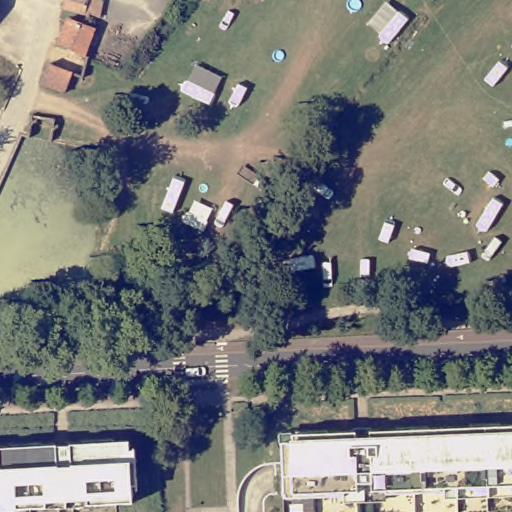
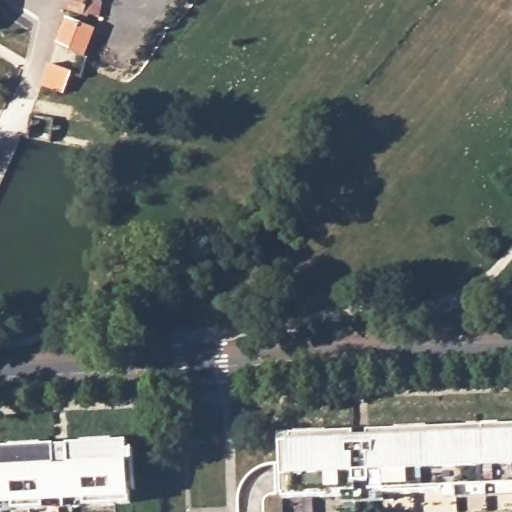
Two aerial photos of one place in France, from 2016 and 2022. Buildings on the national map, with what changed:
unchanged [(69,0),(93,0),(102,4),(97,19),(65,9),(69,0)]
unchanged [(86,56),(57,49),(65,25),(94,35),(86,56)]
unchanged [(54,67),(74,76),(66,99),(44,90),(54,67)]
unchanged [(455,490),(455,497),(395,499),(395,493),(351,493),(350,500),(293,501),(290,437),(308,435),(308,430),(337,428),(338,436),(403,436),(405,429),(433,429),(434,435),(477,435),(475,427),(512,426),(512,488),(455,490)]
unchanged [(7,445),(38,443),(38,446),(79,443),(79,440),(109,438),(110,441),(123,440),(131,454),(135,471),(135,486),(131,486),(131,498),(85,501),(85,498),(44,500),(44,503),(14,505),(13,501),(0,502),(0,449),(7,448),(7,445)]

